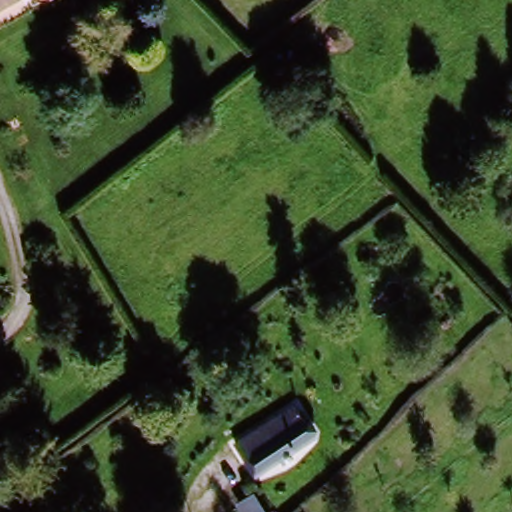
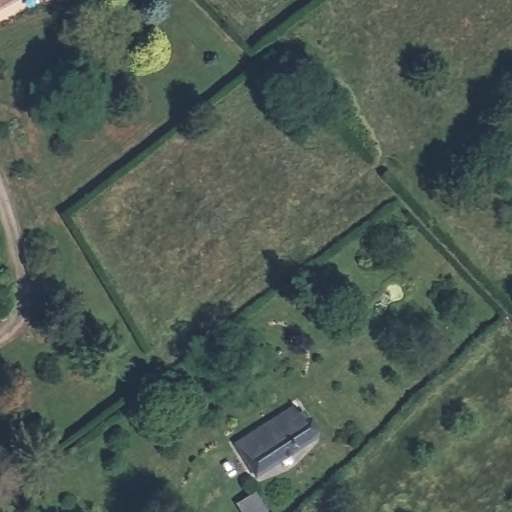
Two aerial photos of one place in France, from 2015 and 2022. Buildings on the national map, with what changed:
unchanged [(0,6),(0,0),(9,0),(0,6)]
unchanged [(314,441),(258,481),(238,453),(294,413),(314,441)]
unchanged [(250,512),(232,512),(242,503),(250,512)]

